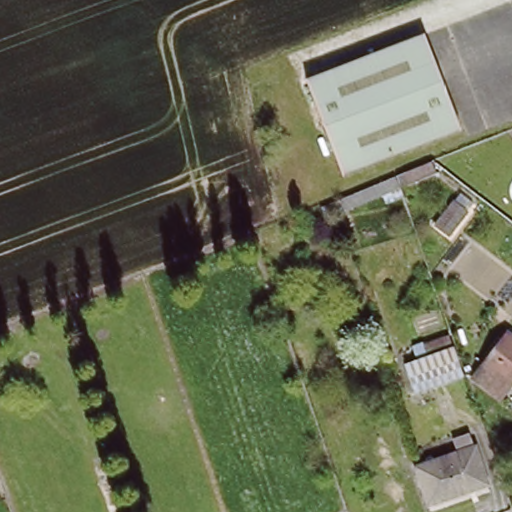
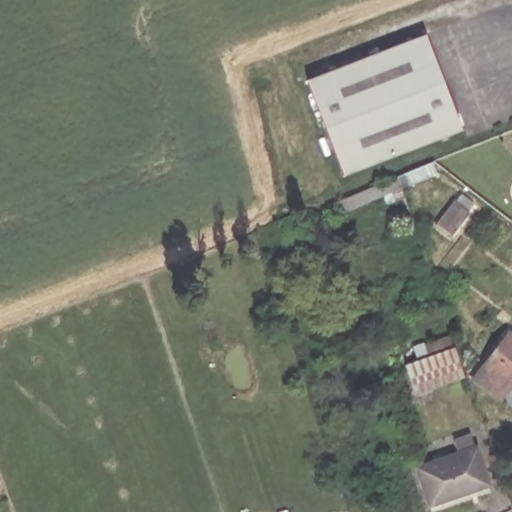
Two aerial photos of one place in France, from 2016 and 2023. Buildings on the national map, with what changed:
unchanged [(462,127),(343,172),(307,78),(425,32),(462,127)]
unchanged [(439,227),(457,206),(468,215),(451,237),(439,227)]
unchanged [(509,329),(512,331),(512,383),(510,385),(483,363),(509,329)]
unchanged [(467,377),(419,394),(408,362),(457,345),(467,377)]
unchanged [(417,460),(469,441),(485,483),(432,502),(417,460)]

